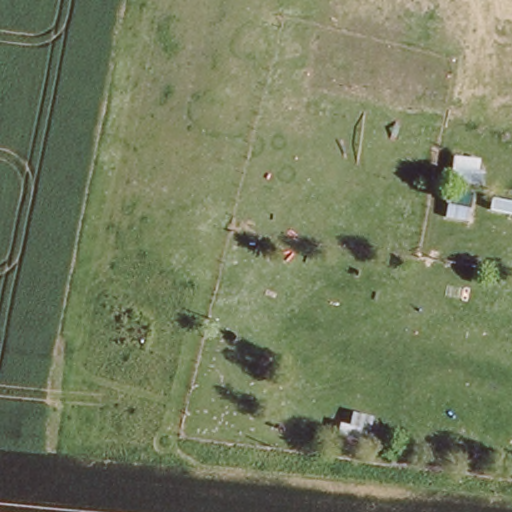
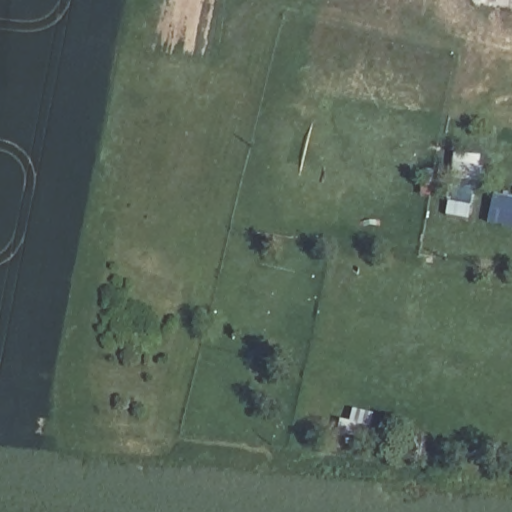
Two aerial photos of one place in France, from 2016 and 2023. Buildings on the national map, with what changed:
unchanged [(444,215),(448,189),(472,193),(468,219),(444,215)]
unchanged [(372,414),(367,440),(337,434),(339,421),(349,423),(351,410),(372,414)]

